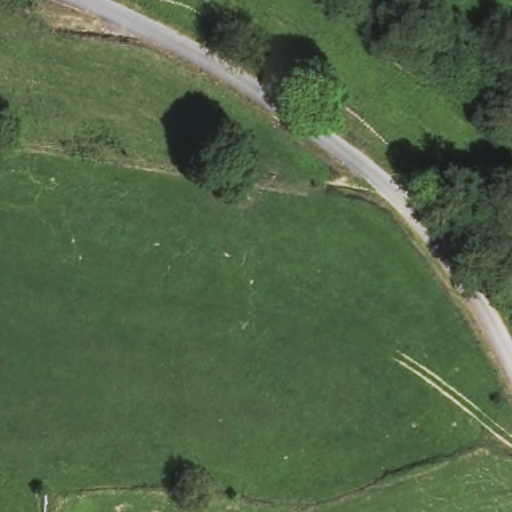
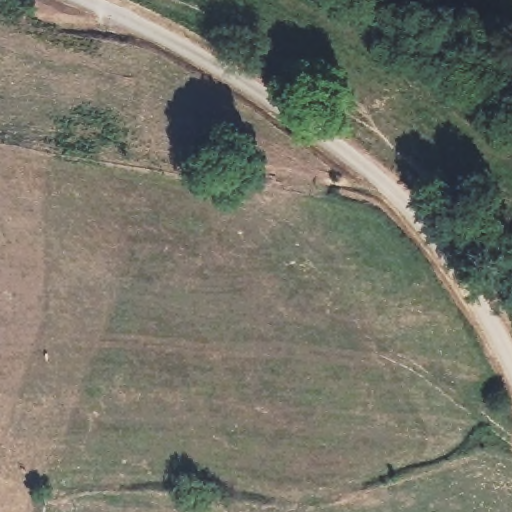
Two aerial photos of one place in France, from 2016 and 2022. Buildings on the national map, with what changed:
[]

